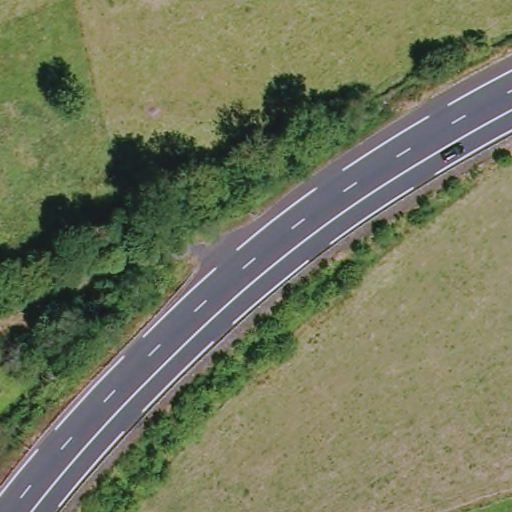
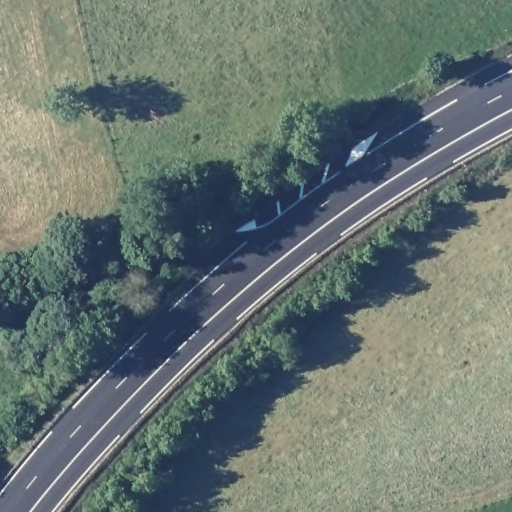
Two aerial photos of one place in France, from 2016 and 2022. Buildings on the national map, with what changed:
unchanged [(43,365),(35,348),(55,339),(62,356),(43,365)]

